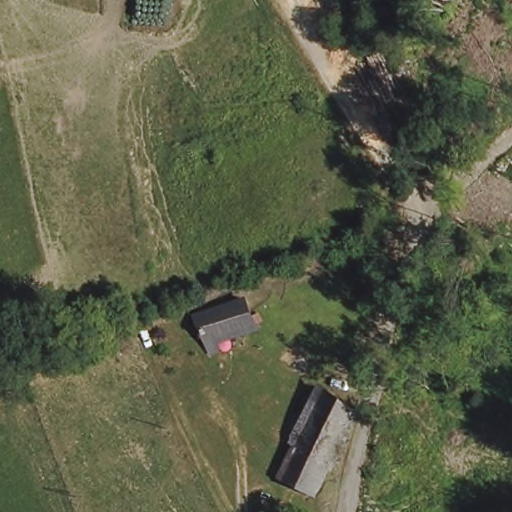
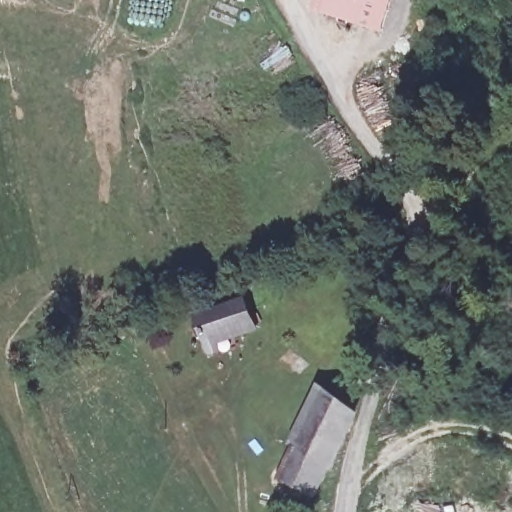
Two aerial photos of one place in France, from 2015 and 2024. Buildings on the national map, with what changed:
new [(364,7),(366,0),(395,0),(384,33),(314,14),(318,0),(341,0),(364,7)]
new [(364,7),(341,0),(366,0),(364,7)]
unchanged [(243,297),(258,328),(221,343),(223,350),(209,355),(193,317),(243,297)]
unchanged [(362,411),(335,464),(332,462),(305,448),(301,446),(327,393),(362,411)]
unchanged [(332,462),(312,499),(287,484),(305,448),(332,462)]

